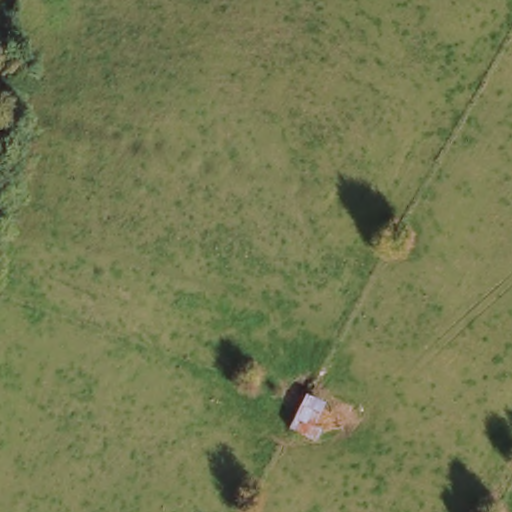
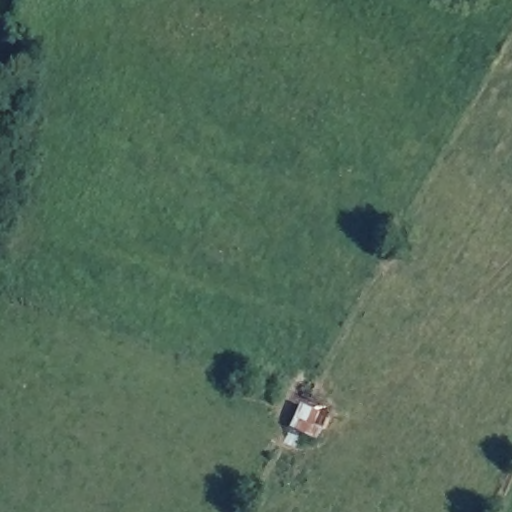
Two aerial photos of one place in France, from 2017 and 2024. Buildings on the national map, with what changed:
unchanged [(323,415),(309,439),(283,426),(298,403),(323,415)]

